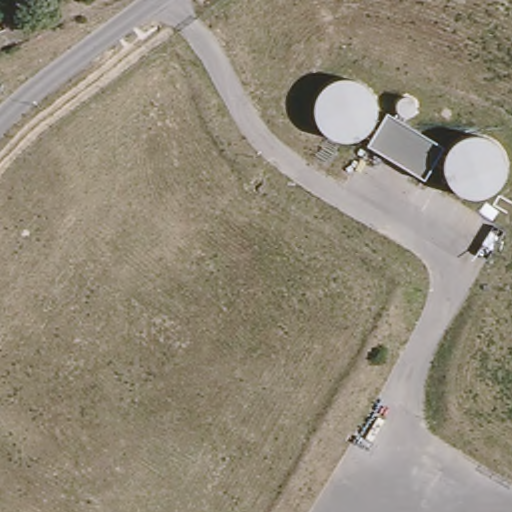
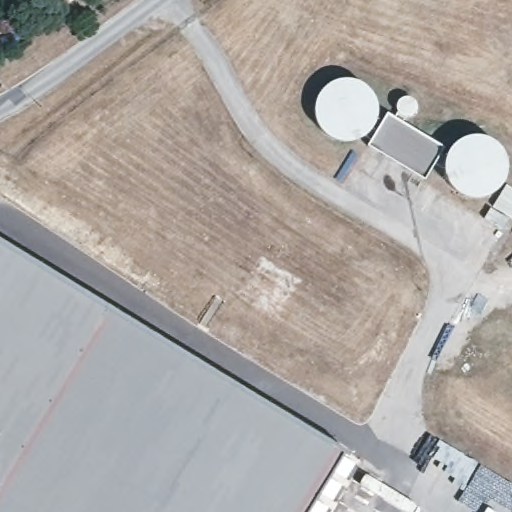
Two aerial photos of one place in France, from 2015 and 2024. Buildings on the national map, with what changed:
new [(67,5),(63,0),(74,0),(67,5)]
unchanged [(441,149),(423,178),(365,145),(383,115),(441,149)]
new [(302,512),(0,512),(0,238),(343,445),(302,512)]

